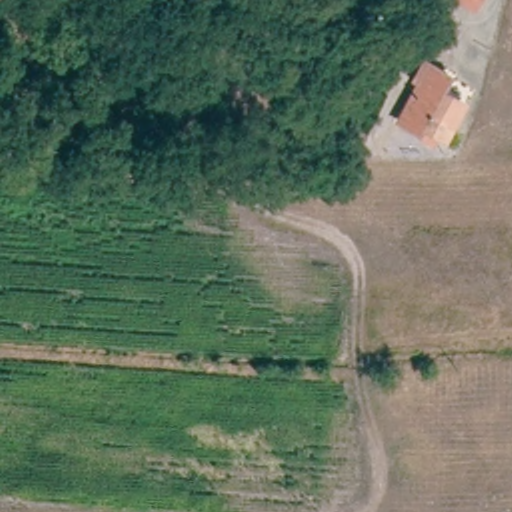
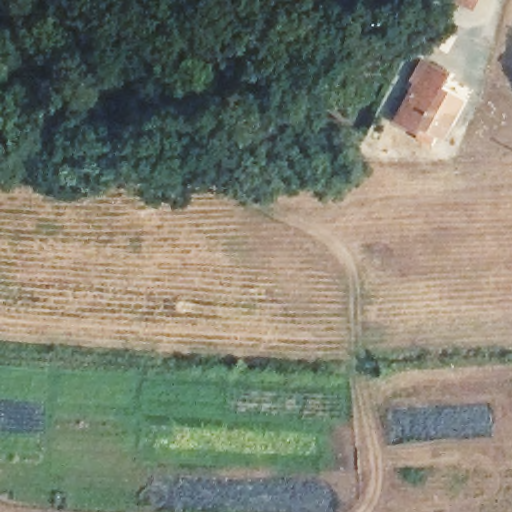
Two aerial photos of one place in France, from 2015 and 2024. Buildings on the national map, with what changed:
unchanged [(452,4),(454,0),(480,0),(472,12),(452,4)]
unchanged [(440,75),(433,91),(452,100),(436,135),(417,126),(413,132),(394,122),(418,65),(440,75)]

